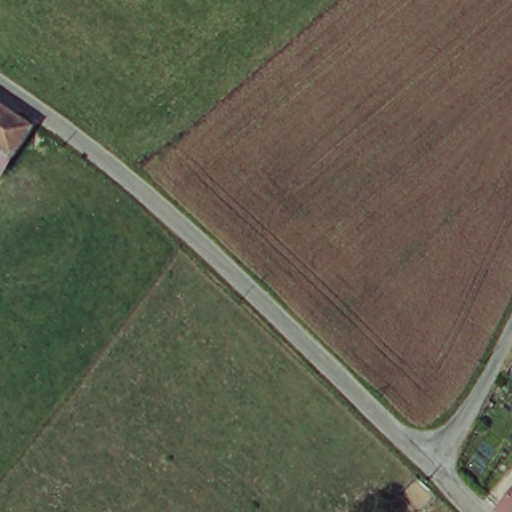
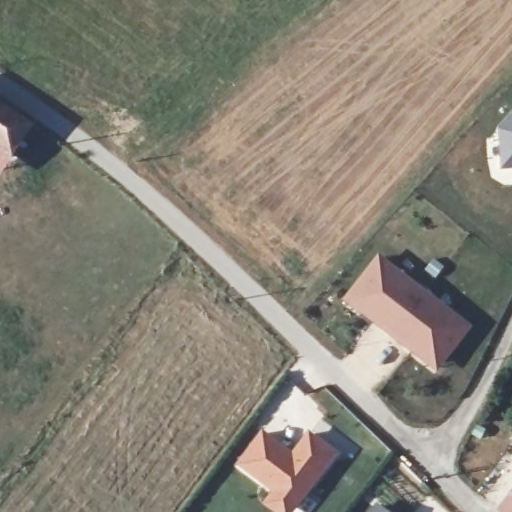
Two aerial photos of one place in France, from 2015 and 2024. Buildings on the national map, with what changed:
unchanged [(35,126),(17,152),(0,141),(0,102),(35,126)]
new [(512,170),(500,171),(497,127),(512,110),(512,170)]
unchanged [(17,152),(5,169),(0,165),(0,141),(17,152)]
new [(437,373),(342,301),(377,254),(473,328),(437,373)]
new [(274,512),(262,503),(272,492),(235,465),(262,429),(292,452),(309,431),(339,453),(295,512),(274,512)]
new [(392,512),(367,512),(376,500),(392,512)]
unchanged [(512,512),(509,512),(512,509),(512,512)]

